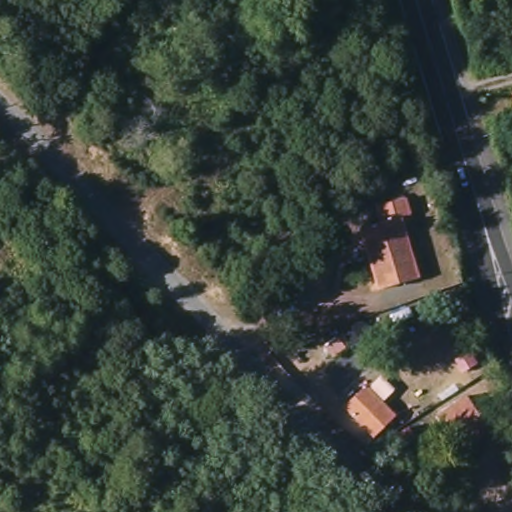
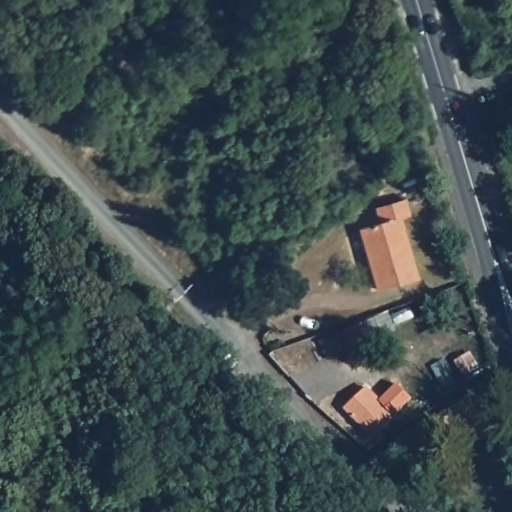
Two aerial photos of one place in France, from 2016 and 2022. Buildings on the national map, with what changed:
unchanged [(512,92),(512,96),(511,93),(512,92)]
unchanged [(366,230),(386,224),(382,209),(408,202),(413,217),(403,220),(420,281),(383,292),(366,230)]
unchanged [(396,416),(380,433),(384,436),(377,442),(342,406),(365,384),(396,416)]
unchanged [(493,431),(462,451),(441,418),(473,398),(493,431)]
unchanged [(413,439),(401,447),(395,437),(407,429),(413,439)]

